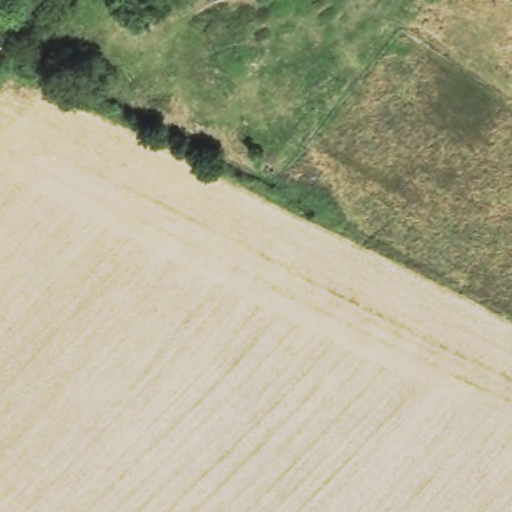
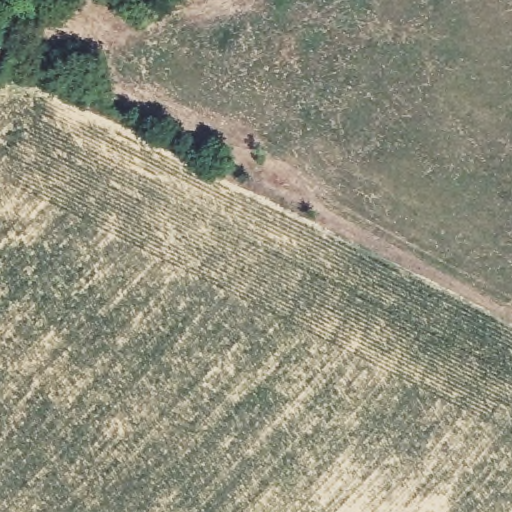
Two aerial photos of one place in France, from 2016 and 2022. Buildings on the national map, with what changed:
[]

